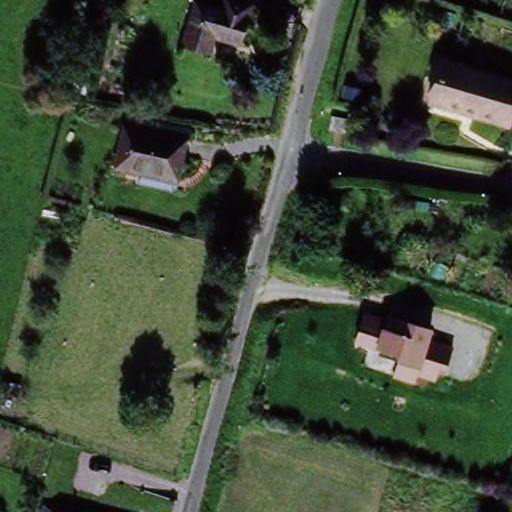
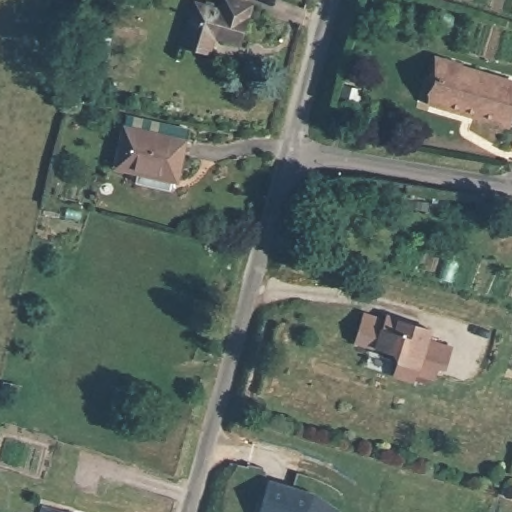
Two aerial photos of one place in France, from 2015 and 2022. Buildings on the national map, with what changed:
unchanged [(227,0),(235,0),(255,6),(242,47),(214,37),(209,51),(180,42),(193,2),(222,12),(227,0)]
unchanged [(439,78),(435,76),(440,58),(512,75),(512,101),(508,118),(454,105),(455,98),(435,93),(439,78)]
unchanged [(139,168),(122,164),(134,123),(190,139),(182,178),(179,194),(135,183),(139,168)]
demolished [(329,123),(352,129),(346,155),(322,152),(329,123)]
unchanged [(452,342),(440,375),(422,369),(417,378),(392,371),(396,360),(350,343),(364,312),(452,342)]
new [(315,496),(337,511),(336,512),(258,512),(269,480),(315,496)]
unchanged [(45,512),(47,507),(63,512),(45,512)]

